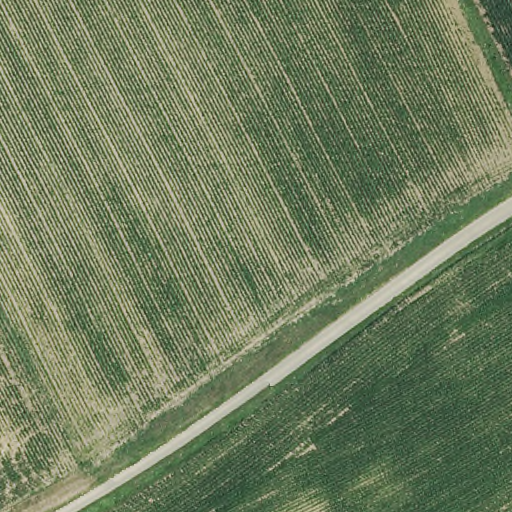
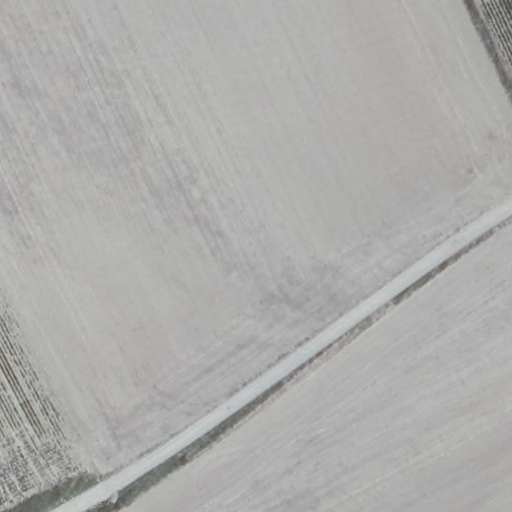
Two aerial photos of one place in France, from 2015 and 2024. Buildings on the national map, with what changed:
[]

